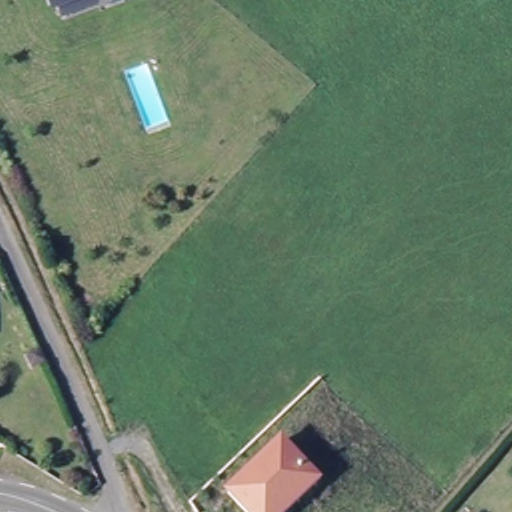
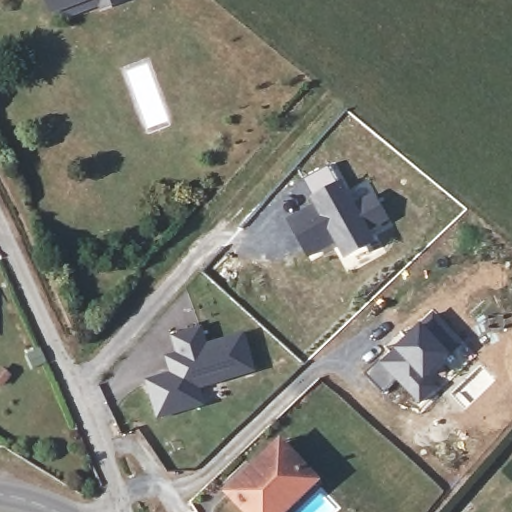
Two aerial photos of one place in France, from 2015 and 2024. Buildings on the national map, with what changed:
unchanged [(53,25),(50,18),(43,0),(114,0),(53,25)]
new [(314,196),(305,179),(330,164),(341,182),(344,180),(356,204),(375,193),(390,220),(370,232),(376,242),(346,259),(337,244),(308,258),(288,220),(317,207),(311,197),(314,196)]
new [(435,315),(461,344),(425,377),(436,387),(421,402),(398,378),(383,393),(365,374),(382,359),(384,363),(435,315)]
new [(163,375),(164,378),(177,374),(171,355),(182,351),(176,334),(204,326),(209,344),(246,333),(256,368),(183,390),(188,407),(162,414),(151,378),(163,375)]
unchanged [(280,447),(315,482),(305,492),(286,512),(246,512),(231,496),(270,457),(280,447)]

